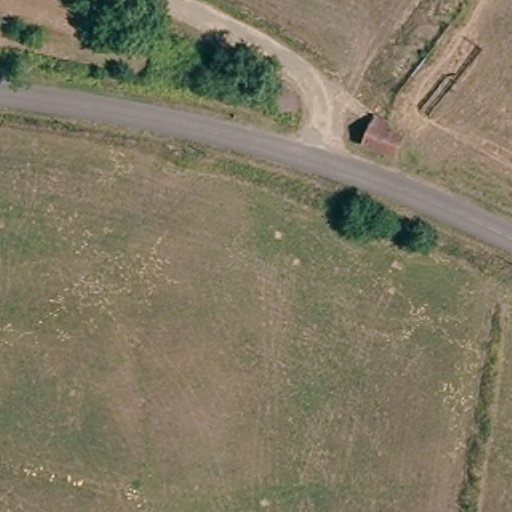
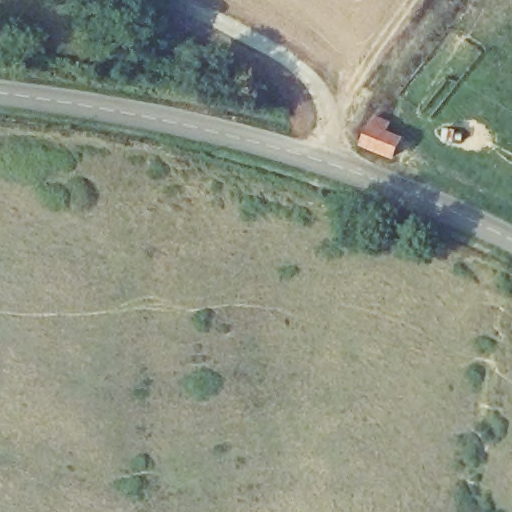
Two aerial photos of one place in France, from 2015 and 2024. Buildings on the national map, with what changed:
unchanged [(381,119),(378,132),(394,137),(390,152),(360,144),(369,116),(381,119)]

